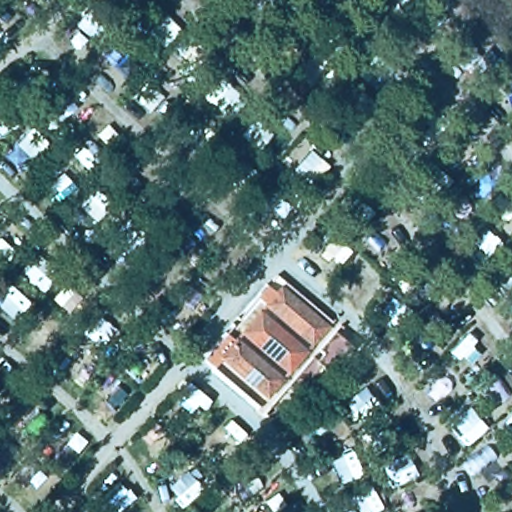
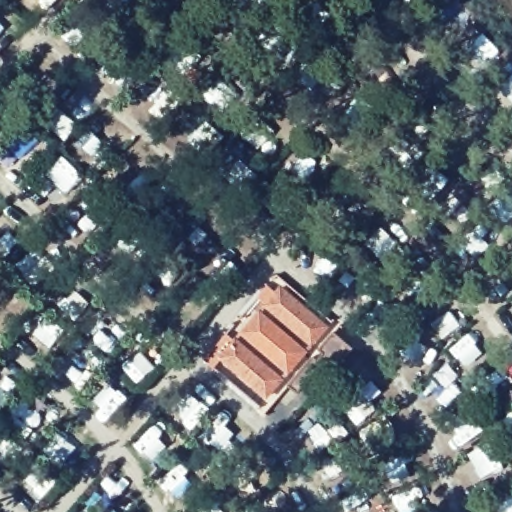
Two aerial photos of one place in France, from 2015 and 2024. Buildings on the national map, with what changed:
unchanged [(287,287),(300,299),(329,326),(317,340),(313,345),(280,316),(270,306),(287,287)]
unchanged [(263,313),(274,322),(307,352),(290,371),(254,340),(246,333),(263,313)]
unchanged [(239,339),(247,346),(284,378),(270,396),(230,362),(224,357),(239,339)]

